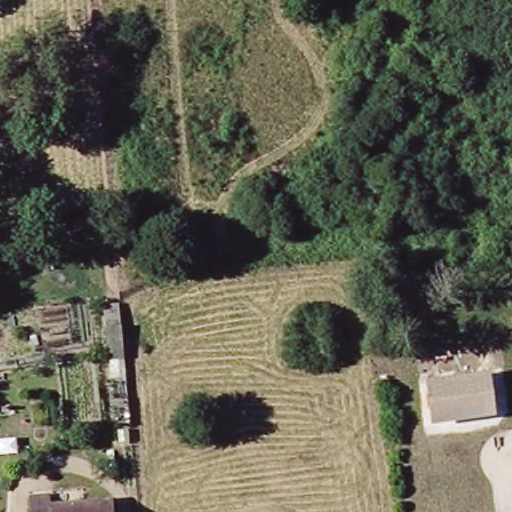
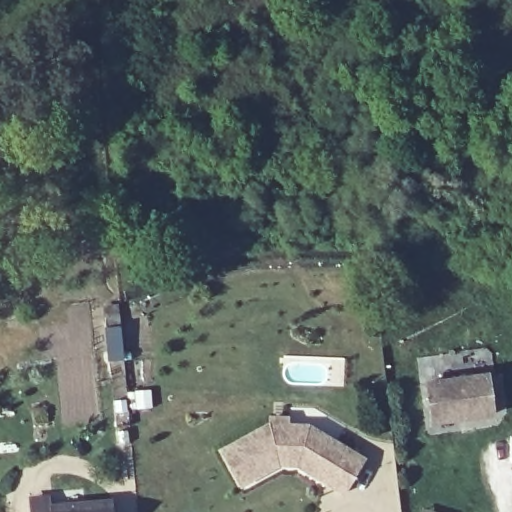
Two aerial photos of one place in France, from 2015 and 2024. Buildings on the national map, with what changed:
unchanged [(492,413),(429,421),(426,393),(425,380),(487,372),(488,386),(492,413)]
new [(220,449),(270,423),(270,416),(290,417),(290,425),(312,423),(368,458),(345,494),(298,467),(279,467),(240,488),(220,449)]
unchanged [(23,499),(44,497),(45,508),(107,501),(108,512),(24,512),(23,499)]
new [(422,508),(437,512),(421,512),(422,508)]

